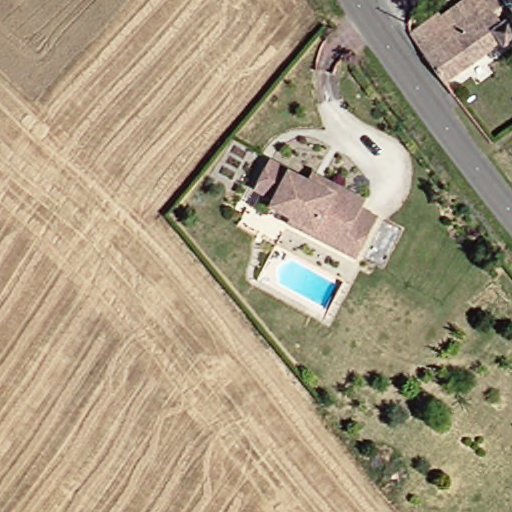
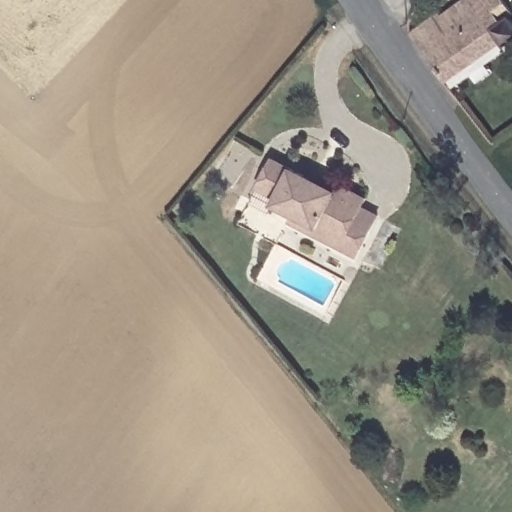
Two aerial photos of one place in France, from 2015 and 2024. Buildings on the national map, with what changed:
unchanged [(504,25),(512,38),(512,39),(495,49),(490,42),(436,78),(404,30),(431,11),(435,18),(464,0),(497,0),(509,21),(504,25)]
unchanged [(324,255),(331,241),(241,198),(254,168),(291,187),(296,178),(348,206),(344,216),(360,222),(342,263),(324,255)]

